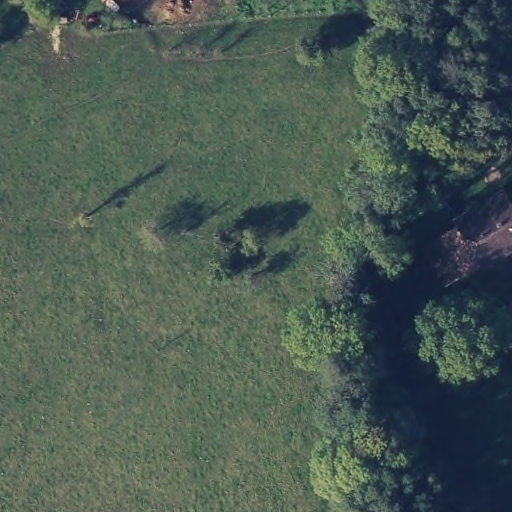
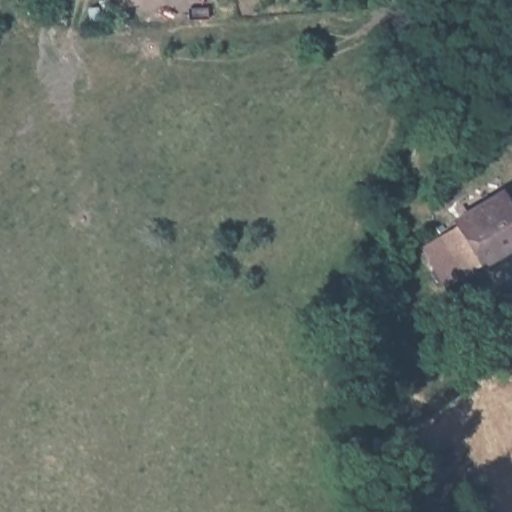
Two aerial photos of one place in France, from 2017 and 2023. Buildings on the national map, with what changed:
unchanged [(512,198),(512,253),(489,265),(467,222),(512,198)]
unchanged [(489,265),(469,276),(448,232),(467,222),(489,265)]

